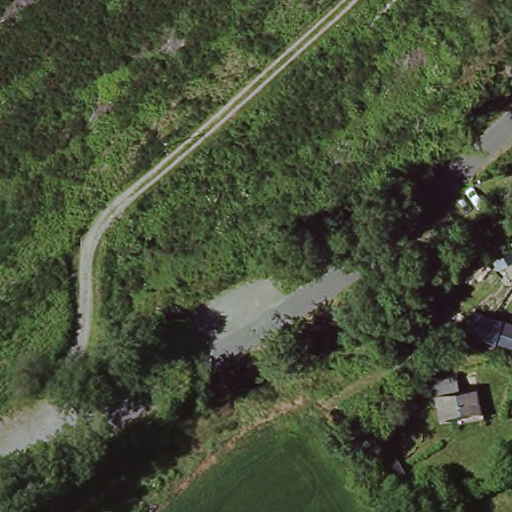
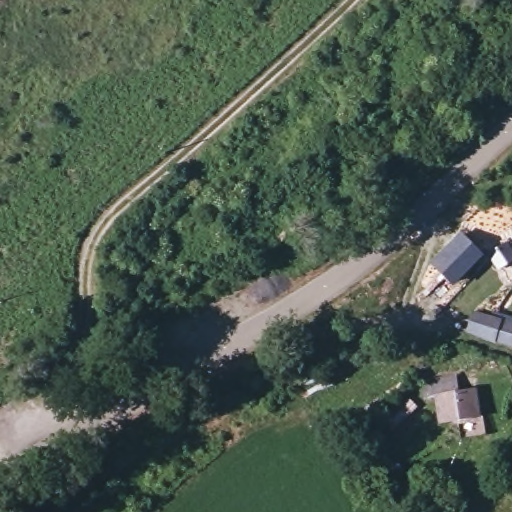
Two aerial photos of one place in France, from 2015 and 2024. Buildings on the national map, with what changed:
new [(430,263),(462,232),(486,256),(454,288),(430,263)]
unchanged [(495,320),(512,324),(512,349),(488,345),(495,320)]
unchanged [(439,425),(435,396),(478,392),(479,417),(439,425)]

